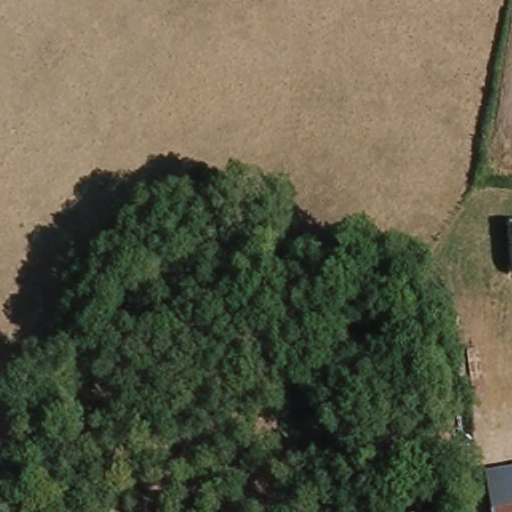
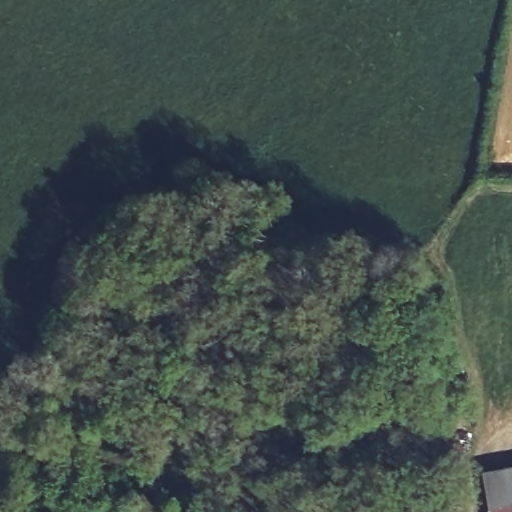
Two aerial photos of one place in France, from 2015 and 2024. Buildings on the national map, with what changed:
unchanged [(512,468),(512,512),(494,512),(488,472),(512,468)]

